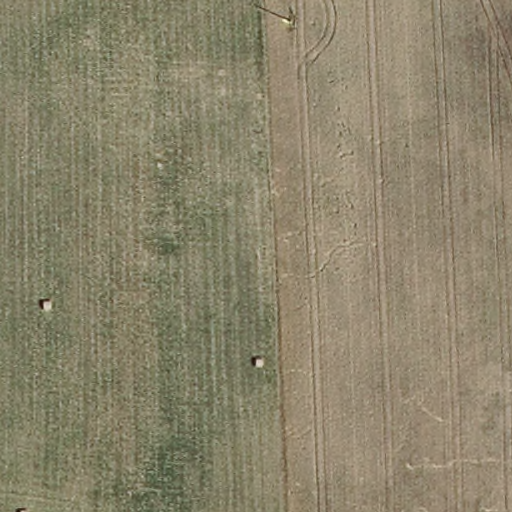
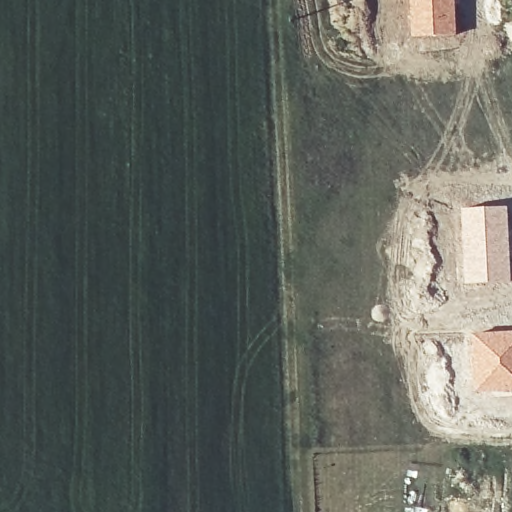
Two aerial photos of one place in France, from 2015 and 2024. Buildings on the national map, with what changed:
new [(456,35),(411,37),(410,0),(455,0),(456,35)]
new [(507,206),(510,282),(463,285),(460,209),(507,206)]
new [(512,331),(512,392),(473,393),(470,333),(512,331)]

